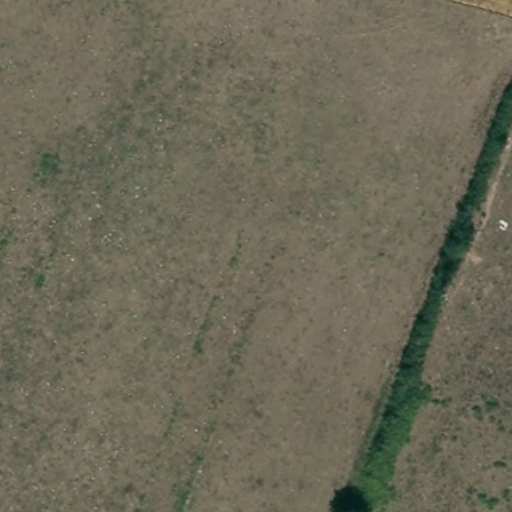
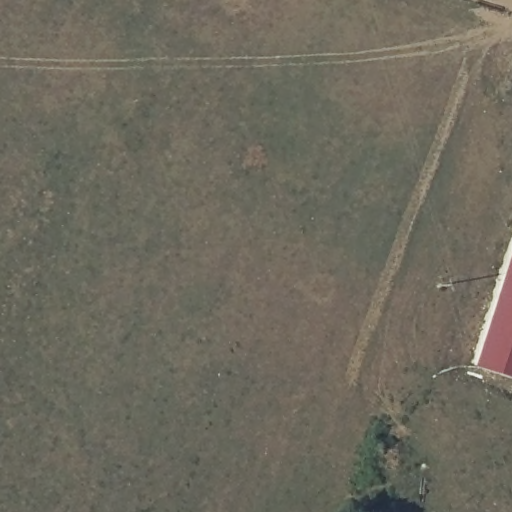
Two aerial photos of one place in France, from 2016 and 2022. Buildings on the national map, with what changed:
new [(476,365),(512,250),(512,377),(476,365)]

